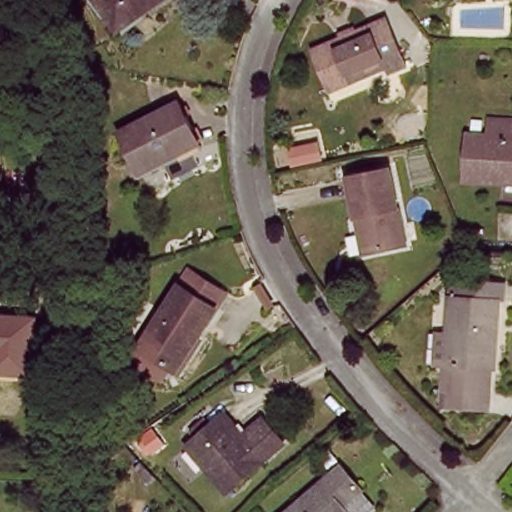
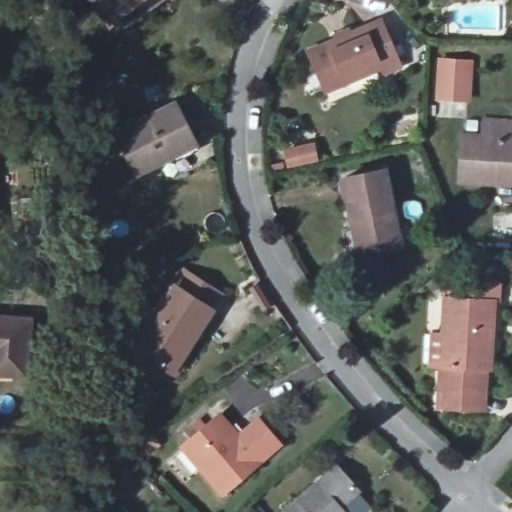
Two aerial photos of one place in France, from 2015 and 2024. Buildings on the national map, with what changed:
unchanged [(113,30),(99,0),(167,0),(168,3),(113,30)]
unchanged [(325,93),(311,53),(383,24),(402,69),(384,77),(380,70),(325,93)]
new [(469,102),(439,100),(441,62),(471,64),(469,102)]
unchanged [(136,177),(116,135),(174,106),(196,147),(136,177)]
unchanged [(458,187),(455,143),(476,143),(476,122),(512,122),(512,143),(511,143),(512,185),(458,187)]
unchanged [(348,225),(341,186),(382,175),(400,251),(364,260),(356,223),(348,225)]
unchanged [(136,355),(182,278),(218,298),(171,375),(136,355)]
unchanged [(439,395),(437,301),(448,301),(448,284),(491,286),(491,303),(486,303),(486,392),(478,392),(478,408),(447,408),(447,395),(439,395)]
unchanged [(17,381),(0,380),(0,315),(22,316),(17,381)]
unchanged [(221,495),(183,449),(218,421),(234,439),(255,422),(277,449),(221,495)]
unchanged [(356,494),(337,508),(339,512),(284,512),(336,470),(356,494)]

